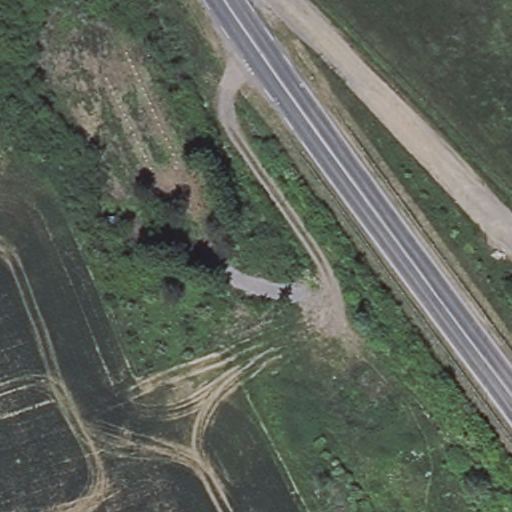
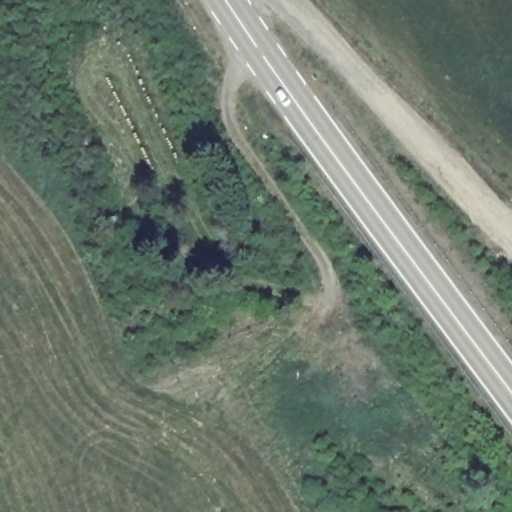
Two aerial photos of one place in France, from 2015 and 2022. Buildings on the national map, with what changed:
unchanged [(117,237),(96,237),(95,219),(115,219),(117,237)]

